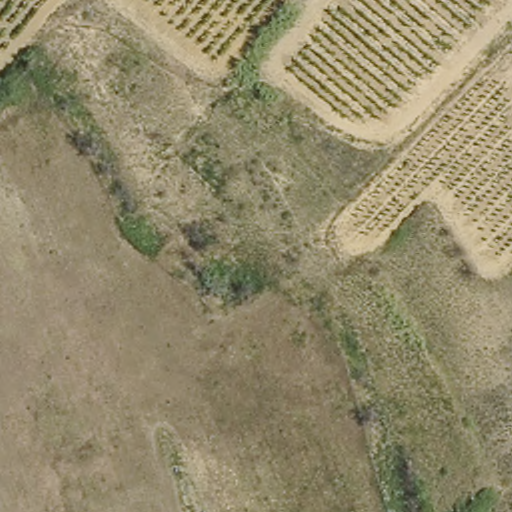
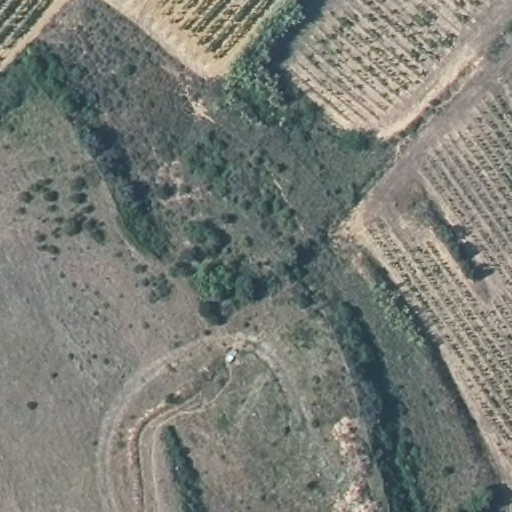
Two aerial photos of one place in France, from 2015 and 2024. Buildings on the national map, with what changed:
[]

